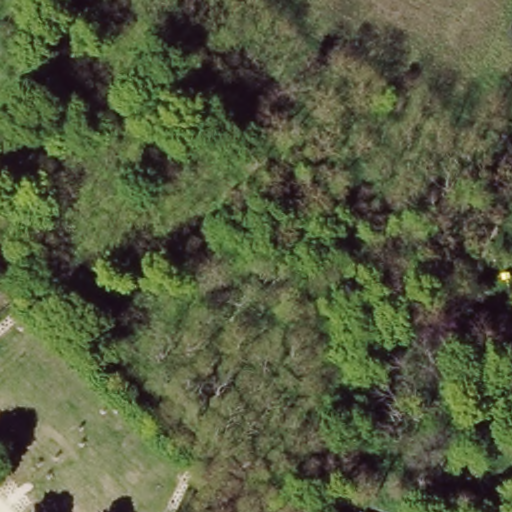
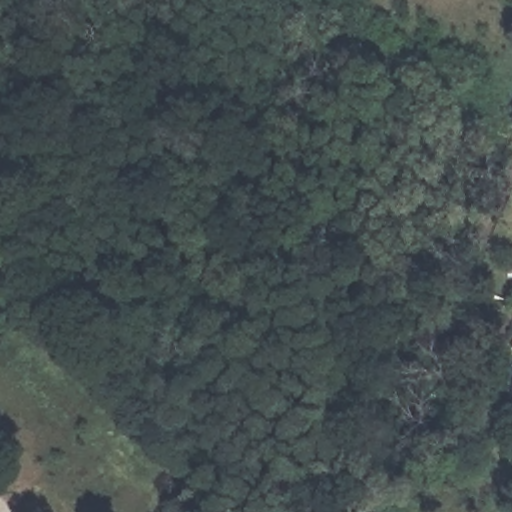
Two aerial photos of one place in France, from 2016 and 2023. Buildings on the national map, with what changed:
unchanged [(512,335),(512,351),(507,349),(512,335)]
unchanged [(511,382),(512,379),(512,382),(511,382)]

